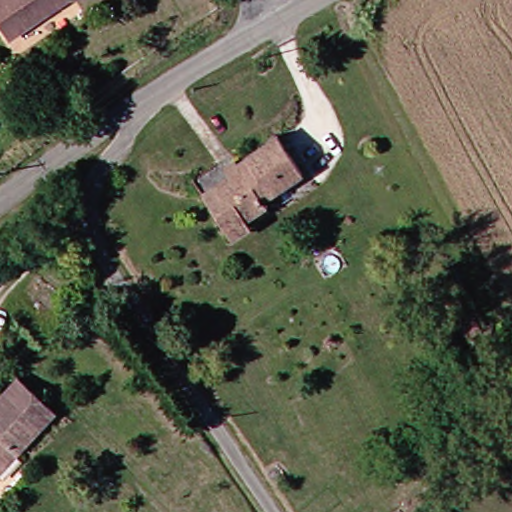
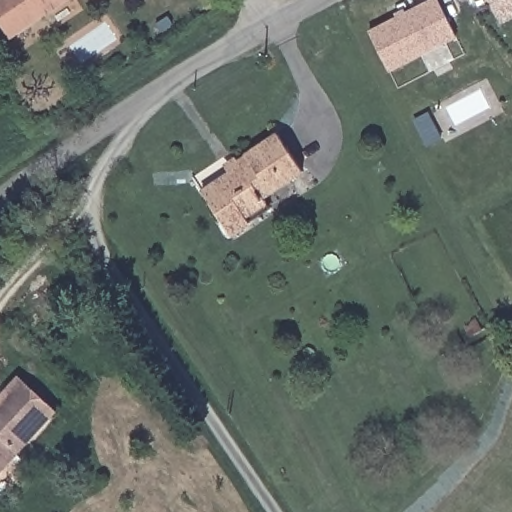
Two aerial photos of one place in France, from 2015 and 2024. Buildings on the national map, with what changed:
unchanged [(15,37),(0,15),(0,0),(72,0),(15,37)]
new [(458,40),(389,75),(367,32),(432,0),(437,0),(458,40)]
new [(512,15),(500,21),(489,0),(512,0),(512,15)]
unchanged [(232,236),(224,224),(203,192),(230,171),(227,168),(237,160),(239,162),(247,157),(246,156),(278,134),(303,171),(264,198),(267,204),(246,217),(250,223),(232,236)]
unchanged [(25,378),(60,411),(21,453),(0,476),(0,404),(25,378)]

